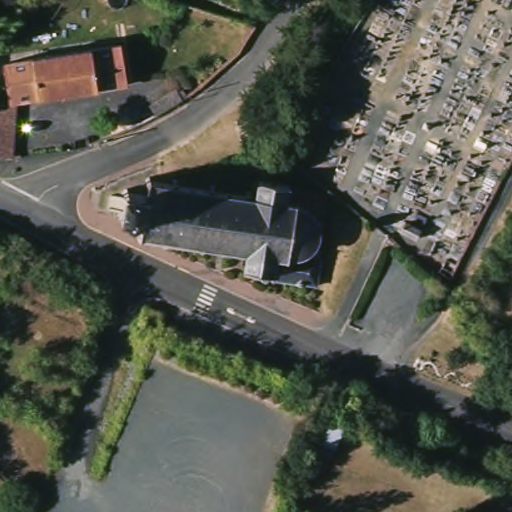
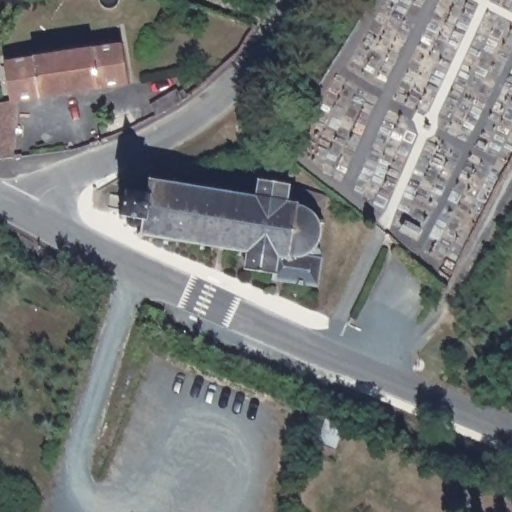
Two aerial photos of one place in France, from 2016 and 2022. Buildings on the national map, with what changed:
unchanged [(8,64),(126,45),(132,85),(14,104),(8,64)]
unchanged [(150,105),(178,90),(184,100),(156,116),(150,105)]
unchanged [(14,159),(0,160),(0,105),(14,104),(14,159)]
unchanged [(139,230),(137,228),(133,229),(128,224),(126,222),(127,220),(128,219),(125,217),(121,220),(119,216),(124,212),(126,195),(123,190),(126,188),(130,193),(148,195),(149,184),(145,179),(149,176),(154,182),(171,184),(172,180),(177,181),(177,185),(209,190),(209,186),(214,186),(214,191),(245,196),(245,191),(250,192),(249,196),(255,197),(258,180),(289,184),(289,186),(325,197),(322,219),(323,219),(324,220),(325,222),(324,223),(319,225),(320,233),(315,246),(319,250),(317,255),(321,259),(317,286),(275,279),(274,280),(272,280),(271,280),(272,273),(245,268),(247,252),(242,251),(240,256),(237,256),(238,250),(205,245),(204,251),(200,250),(200,245),(169,239),(168,245),(163,244),(164,239),(143,236),(140,238),(136,234),(139,230)]
unchanged [(165,312),(160,324),(143,318),(145,306),(165,312)]
unchanged [(334,460),(314,452),(326,417),(346,425),(334,460)]

